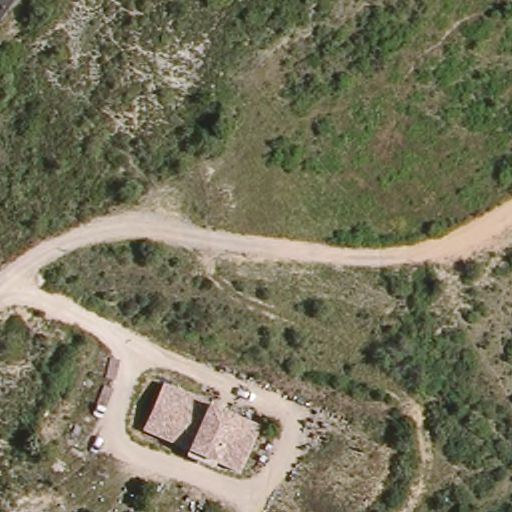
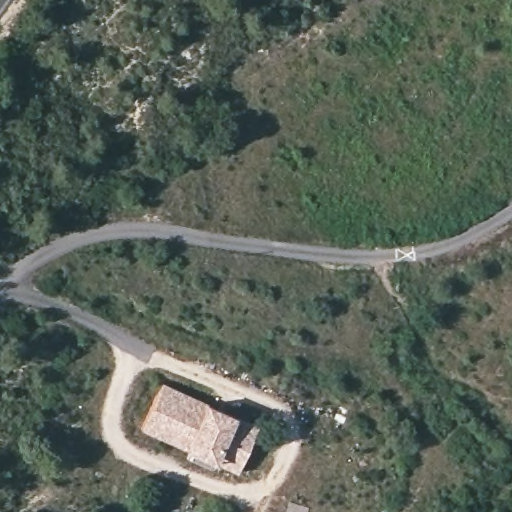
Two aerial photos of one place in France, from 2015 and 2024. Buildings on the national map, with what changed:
unchanged [(261,424),(241,474),(143,431),(163,382),(261,424)]

